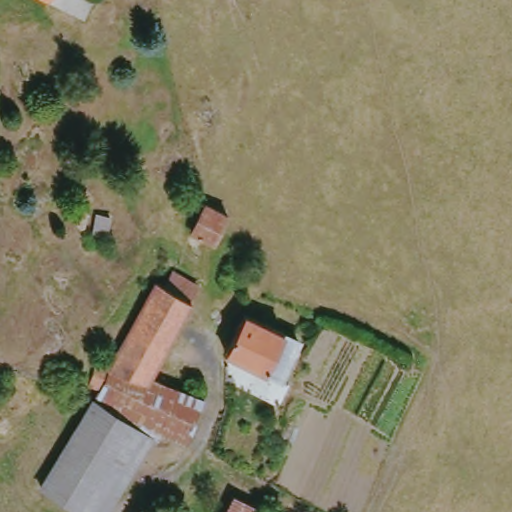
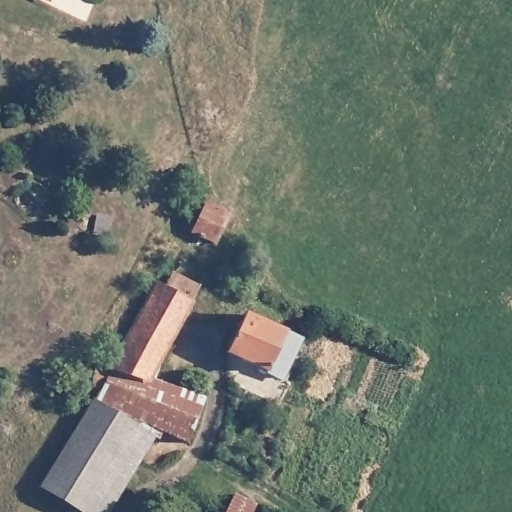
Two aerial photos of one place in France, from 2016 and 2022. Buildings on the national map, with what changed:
unchanged [(40,0),(40,1),(39,0),(40,0)]
unchanged [(239,226),(226,253),(220,251),(200,238),(195,232),(198,231),(212,209),(239,226)]
unchanged [(102,229),(113,211),(125,219),(114,236),(102,229)]
unchanged [(157,280),(194,299),(158,382),(114,362),(157,280)]
unchanged [(259,381),(263,372),(221,352),(245,308),(284,332),(297,338),(276,379),(272,387),(259,381)]
unchanged [(100,360),(112,367),(114,362),(158,382),(201,403),(183,443),(157,432),(129,420),(126,412),(90,397),(83,393),(100,360)]
unchanged [(126,412),(129,420),(157,432),(109,512),(77,512),(35,487),(90,397),(126,412)]
unchanged [(252,512),(220,512),(232,487),(256,504),(252,512)]

